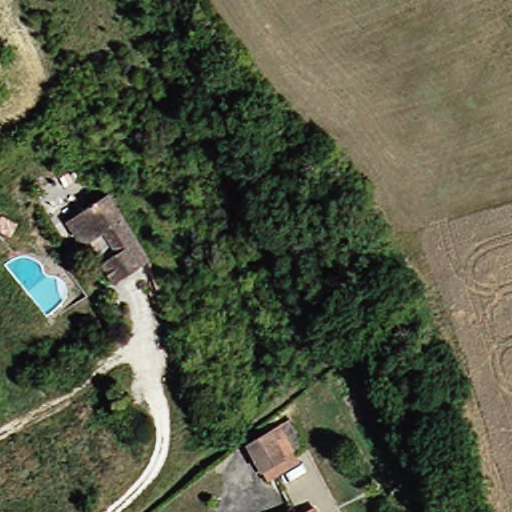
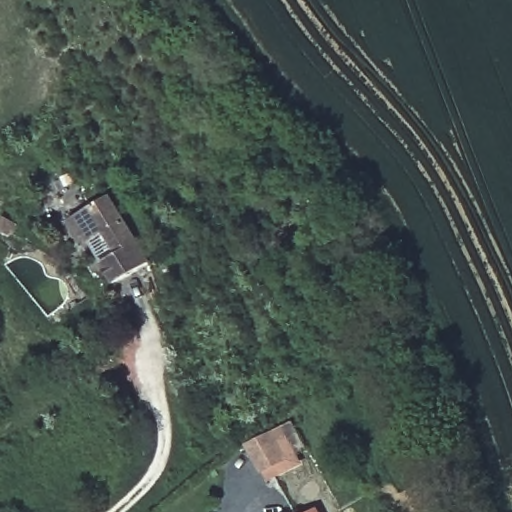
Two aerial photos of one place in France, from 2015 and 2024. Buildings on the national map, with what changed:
unchanged [(88,233),(74,212),(105,192),(121,218),(97,233),(88,233)]
unchanged [(121,218),(147,258),(123,273),(97,233),(121,218)]
unchanged [(266,472),(250,445),(273,432),(288,460),(266,472)]

